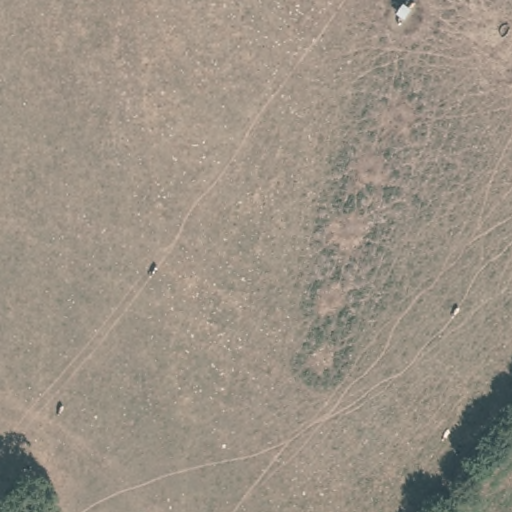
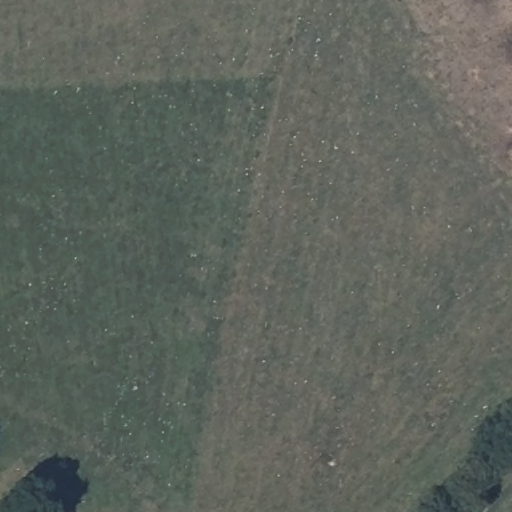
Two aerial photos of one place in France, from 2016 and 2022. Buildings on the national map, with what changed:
[]

